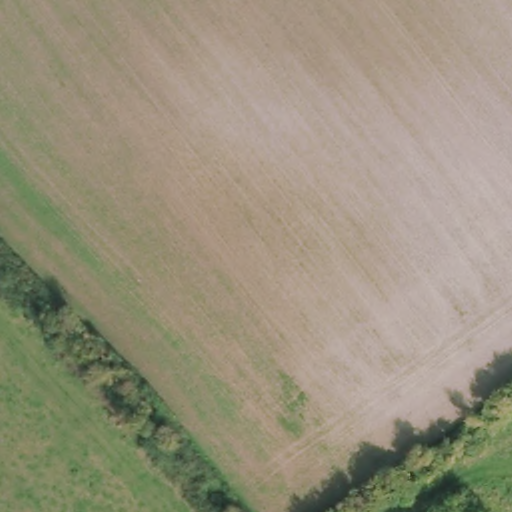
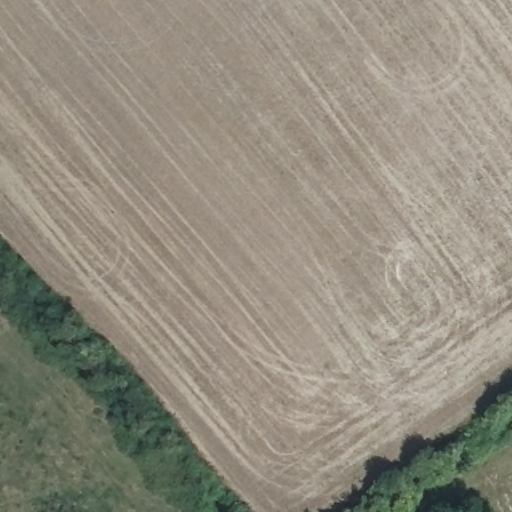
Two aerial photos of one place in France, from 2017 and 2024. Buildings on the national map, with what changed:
[]

